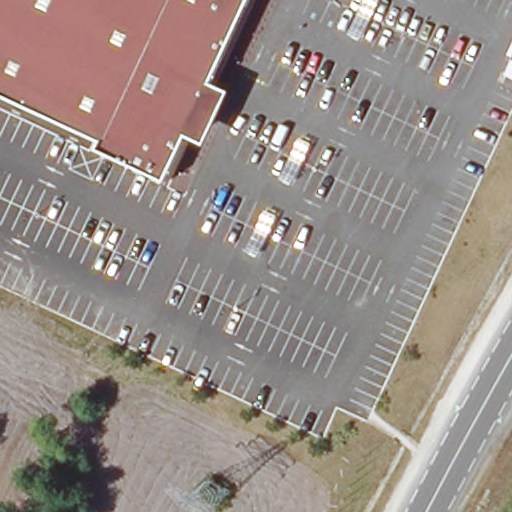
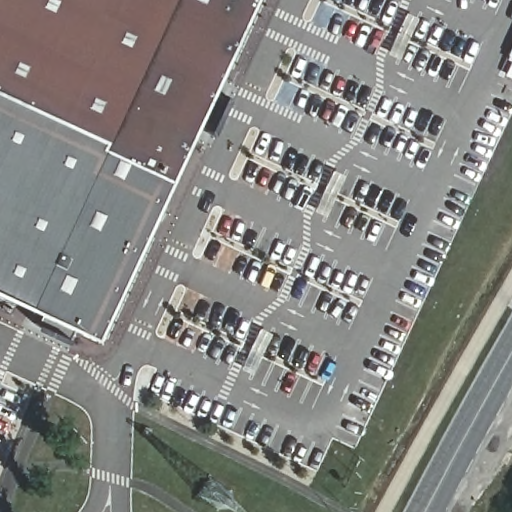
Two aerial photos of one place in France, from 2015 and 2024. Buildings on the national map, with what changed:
unchanged [(200,118),(174,177),(106,146),(109,138),(0,89),(0,0),(254,0),(214,88),(223,91),(209,123),(200,118)]
new [(71,327),(65,340),(39,327),(44,316),(0,293),(0,89),(109,138),(106,146),(140,161),(164,172),(174,177),(98,338),(71,327)]

